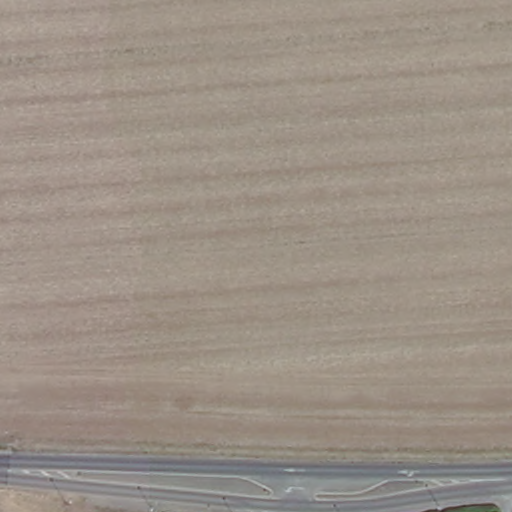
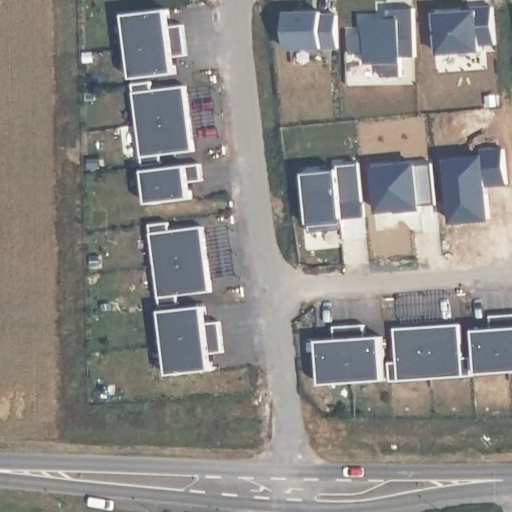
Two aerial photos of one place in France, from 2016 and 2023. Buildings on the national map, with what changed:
new [(411,7),(412,55),(398,56),(398,75),(378,75),(378,61),(362,61),(362,52),(347,53),(346,32),(361,32),(361,19),(384,18),(383,7),(411,7)]
new [(434,11),(494,7),(497,44),(487,44),(487,57),(437,61),(434,11)]
new [(286,12),(324,11),(324,15),(338,15),(338,52),(289,51),(286,12)]
new [(172,25),(183,24),(187,56),(175,57),(176,76),(134,80),(127,16),(170,12),(172,25)]
new [(194,150),(144,156),(133,86),(151,85),(151,92),(187,87),(194,150)]
new [(345,219),(346,229),(311,232),(305,172),(339,170),(339,165),(361,162),(364,201),(366,217),(345,219)]
new [(380,211),(376,169),(434,163),(438,205),(421,206),(422,211),(403,213),(396,214),(396,210),(403,210),(380,211)]
new [(201,167),(204,182),(190,184),(193,201),(149,206),(144,174),(201,167)]
new [(212,292),(180,297),(179,305),(161,305),(152,225),(170,224),(172,233),(204,230),(212,292)]
new [(207,325),(220,323),(223,351),(212,352),(212,372),(171,376),(164,315),(205,310),(207,325)]
new [(491,315),(512,314),(512,373),(480,374),(478,331),(493,332),(491,315)]
new [(462,324),(463,359),(472,361),(474,377),(391,382),(390,364),(398,364),(396,327),(462,324)]
new [(336,342),(334,330),(366,326),(367,340),(382,339),(385,381),(321,387),(319,343),(336,342)]

